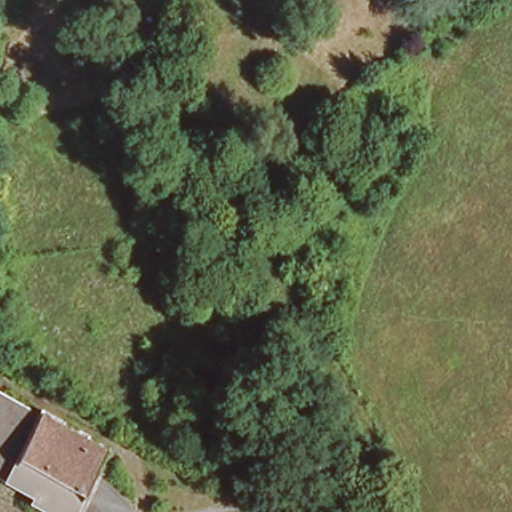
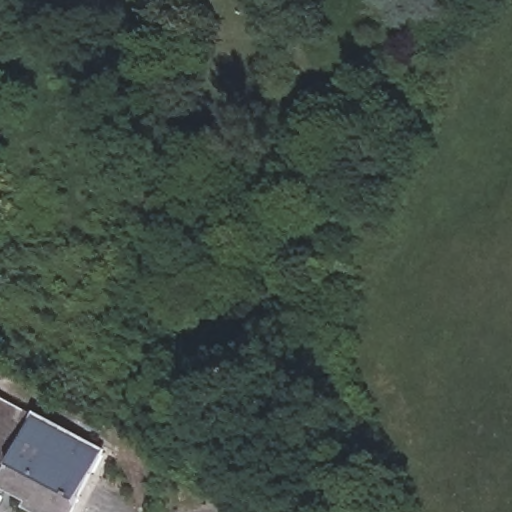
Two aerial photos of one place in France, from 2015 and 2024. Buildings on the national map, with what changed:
unchanged [(53,512),(42,506),(45,500),(0,474),(0,390),(110,454),(75,512),(53,512)]

